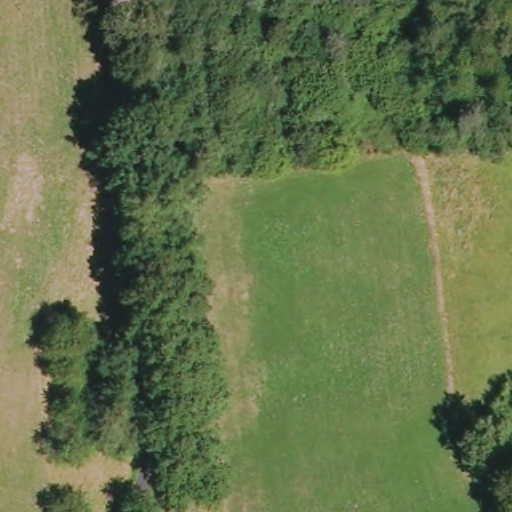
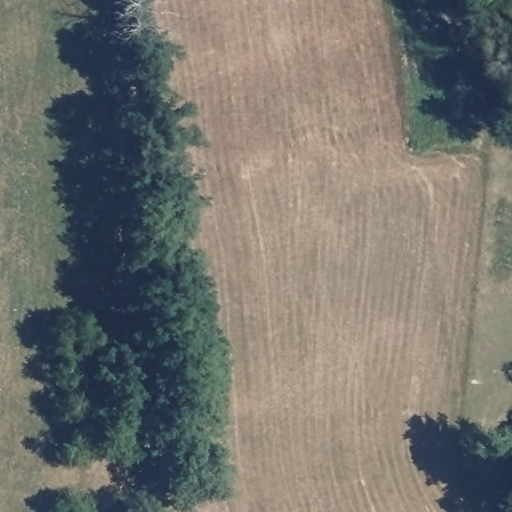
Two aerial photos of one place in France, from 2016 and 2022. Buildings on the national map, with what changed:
[]

